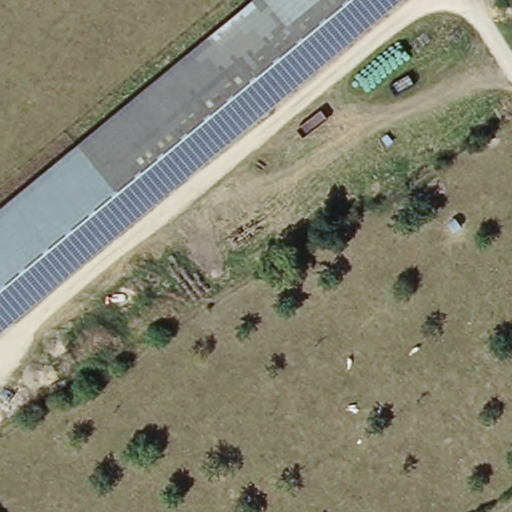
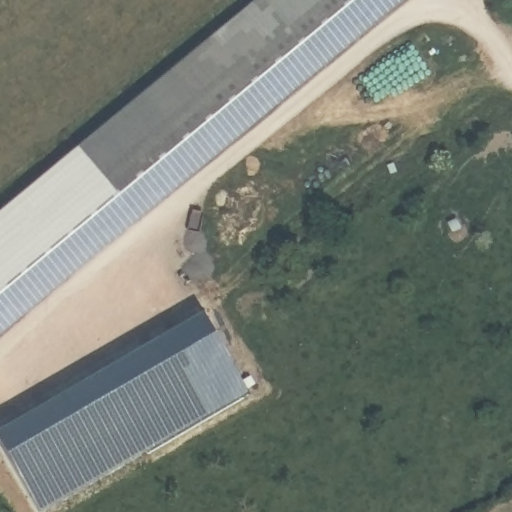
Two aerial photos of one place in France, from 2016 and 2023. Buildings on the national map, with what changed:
unchanged [(0,209),(252,0),(401,0),(0,332),(0,209)]
new [(31,507),(0,454),(0,410),(180,308),(234,392),(31,507)]

